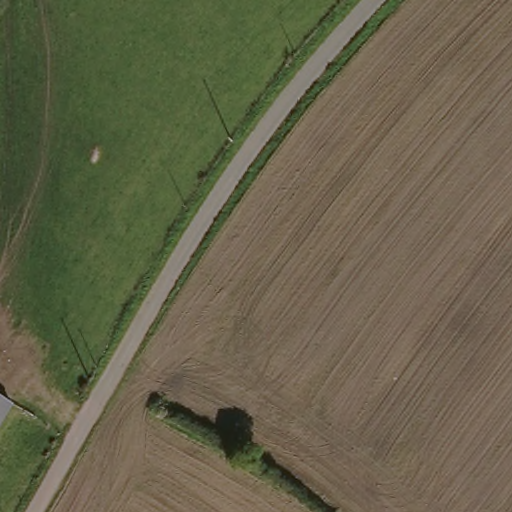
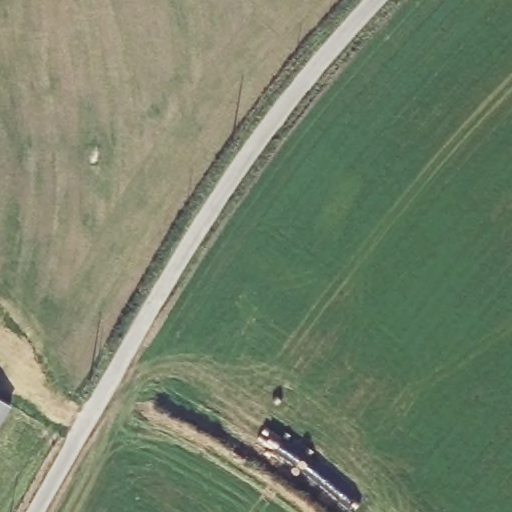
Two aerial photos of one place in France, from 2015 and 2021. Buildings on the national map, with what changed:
unchanged [(0,431),(0,403),(13,412),(0,431)]

